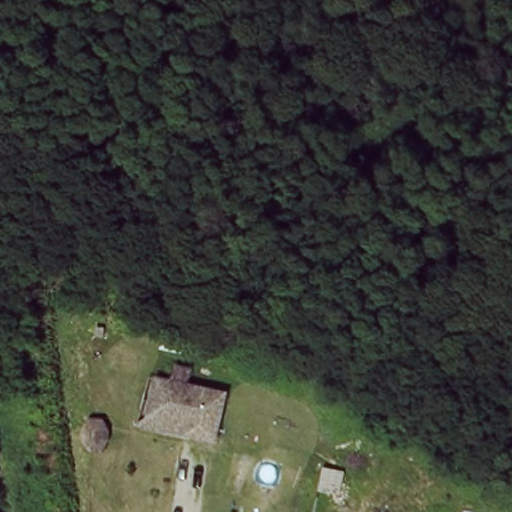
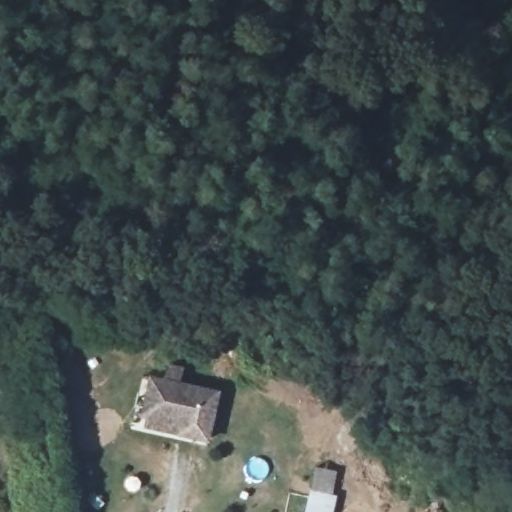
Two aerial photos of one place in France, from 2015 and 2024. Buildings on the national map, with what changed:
unchanged [(152,420),(159,385),(172,387),(175,370),(190,373),(187,390),(226,397),(217,445),(189,439),(140,430),(152,420)]
new [(335,512),(307,512),(316,467),(338,472),(334,495),(338,496),(335,512)]

